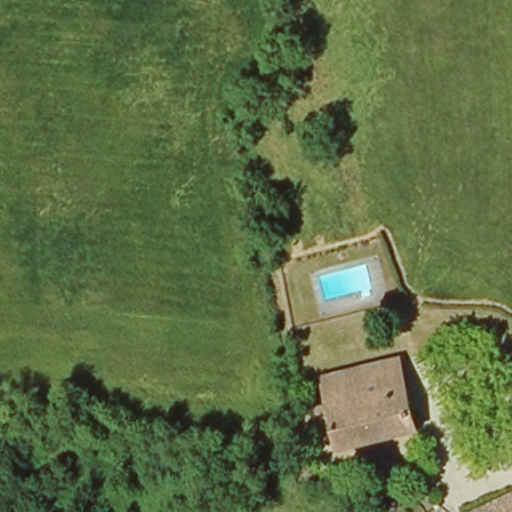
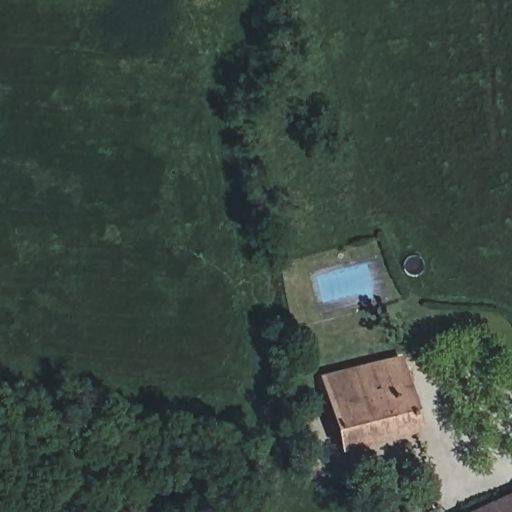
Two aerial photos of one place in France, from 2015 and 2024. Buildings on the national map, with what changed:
unchanged [(385,372),(402,370),(413,437),(337,448),(332,411),(322,411),(321,404),(327,403),(324,381),(385,372)]
unchanged [(490,507),(512,496),(512,512),(492,512),(490,507)]
unchanged [(490,507),(492,512),(479,512),(490,507)]

